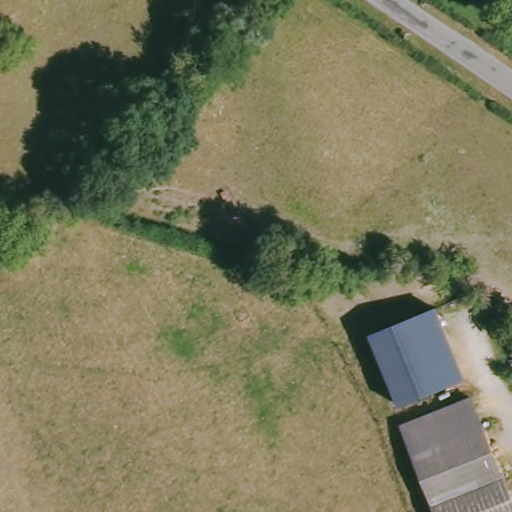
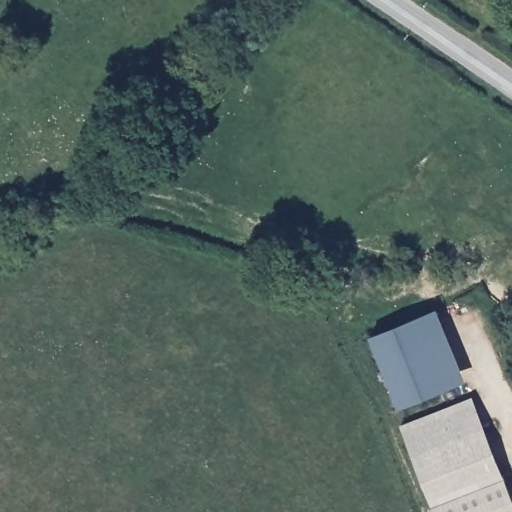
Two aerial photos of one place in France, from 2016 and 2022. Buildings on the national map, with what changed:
unchanged [(370,337),(437,310),(466,382),(399,408),(370,337)]
unchanged [(512,495),(512,512),(438,512),(406,422),(478,396),(512,495)]

